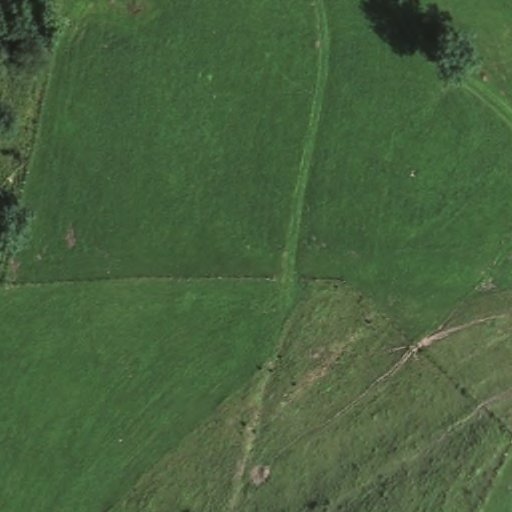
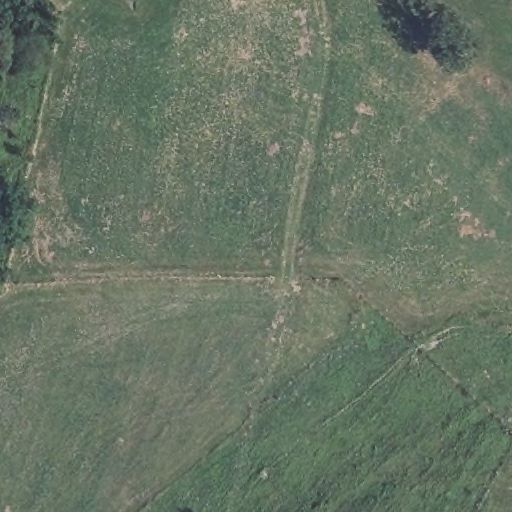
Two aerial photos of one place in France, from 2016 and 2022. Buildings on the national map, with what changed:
[]

